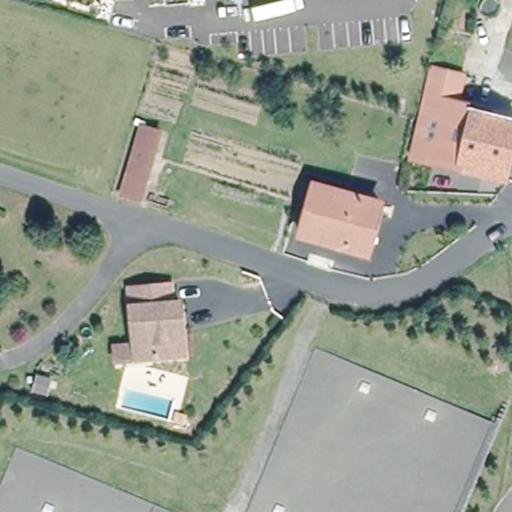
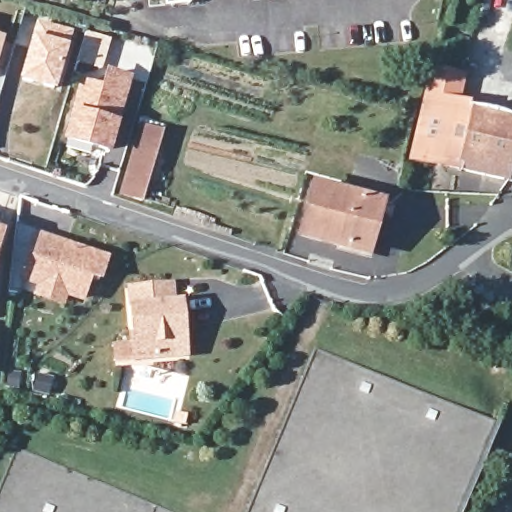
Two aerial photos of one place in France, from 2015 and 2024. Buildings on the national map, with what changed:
new [(69,45),(55,91),(20,81),(32,35),(36,20),(72,31),(69,45)]
new [(1,42),(0,46),(0,42),(1,42)]
new [(120,122),(110,154),(63,140),(72,109),(81,78),(102,84),(107,67),(133,75),(120,122)]
unchanged [(453,80),(449,113),(512,121),(502,176),(412,164),(426,77),(453,80)]
unchanged [(144,125),(165,132),(144,197),(122,190),(144,125)]
unchanged [(314,184),(380,205),(366,253),(297,230),(314,184)]
new [(102,281),(92,277),(85,302),(67,296),(65,306),(32,295),(36,285),(23,280),(19,291),(11,290),(18,224),(110,256),(102,281)]
new [(0,241),(0,229),(3,230),(0,241)]
unchanged [(112,343),(131,340),(129,285),(167,284),(177,283),(179,311),(180,354),(151,355),(114,357),(112,343)]

